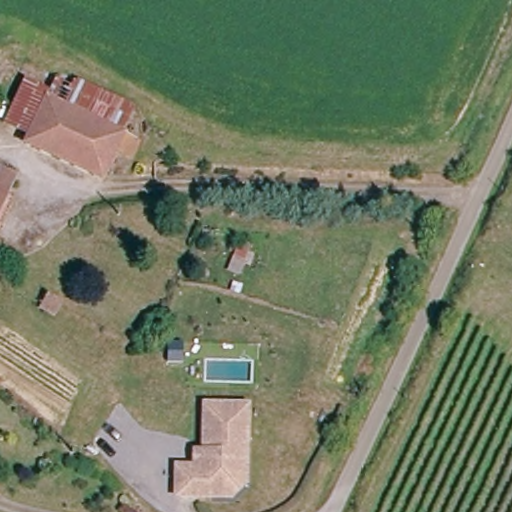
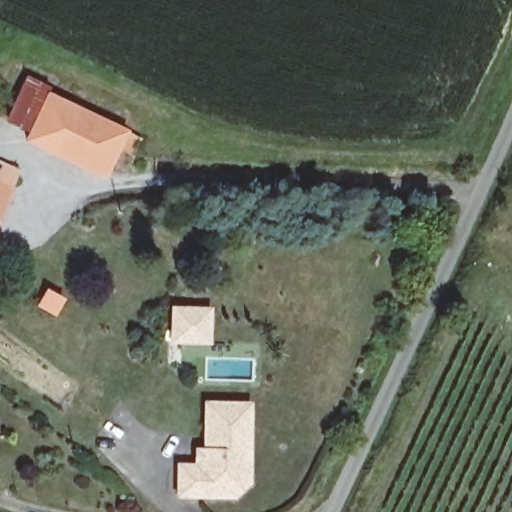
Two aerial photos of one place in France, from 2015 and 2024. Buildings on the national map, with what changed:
unchanged [(22,130),(1,121),(20,74),(48,89),(121,130),(138,139),(131,156),(122,152),(104,178),(19,142),(22,130)]
unchanged [(0,208),(0,171),(15,177),(0,208)]
new [(169,305),(212,306),(210,344),(169,342),(169,305)]
unchanged [(247,411),(242,471),(219,490),(209,490),(210,498),(180,496),(178,470),(201,466),(203,409),(247,411)]

